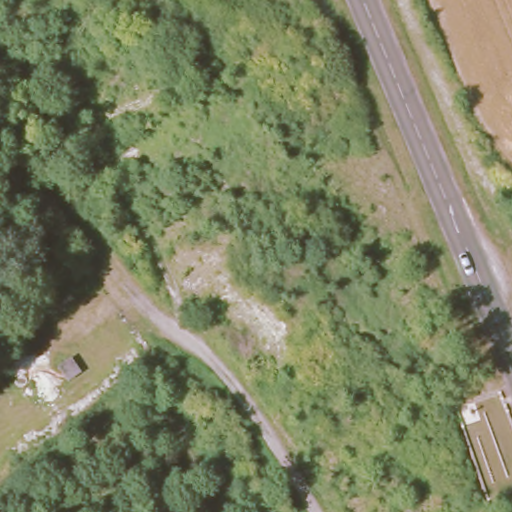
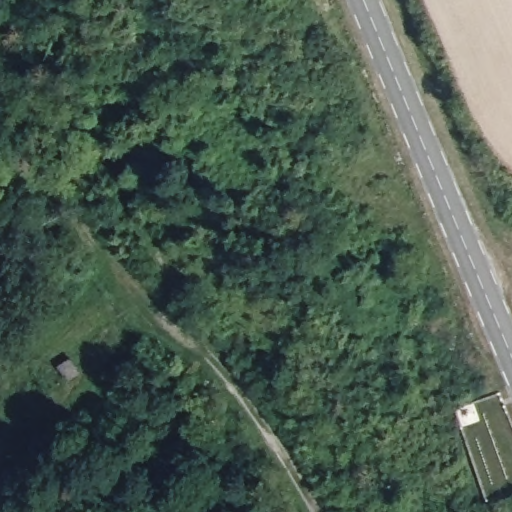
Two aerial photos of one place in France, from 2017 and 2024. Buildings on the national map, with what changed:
unchanged [(70,359),(80,372),(67,381),(58,368),(70,359)]

